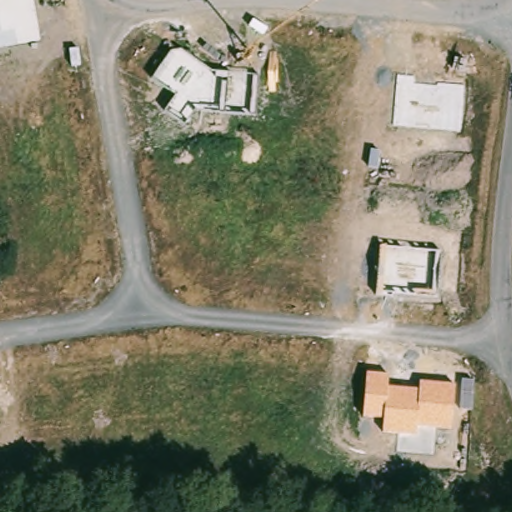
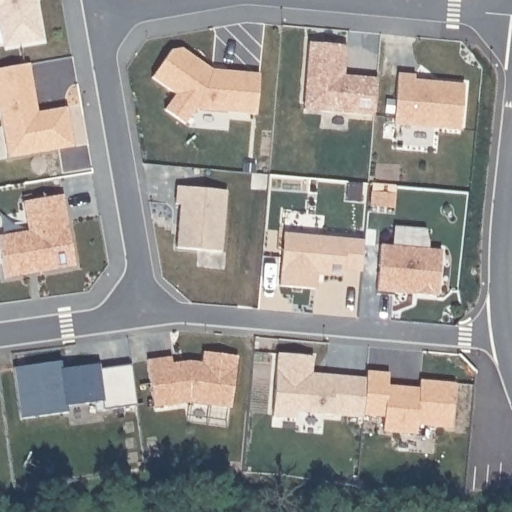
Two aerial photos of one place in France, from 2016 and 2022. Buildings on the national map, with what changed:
unchanged [(15,29),(0,30),(0,0),(33,0),(39,40),(17,44),(15,29)]
new [(311,45),(348,48),(346,77),(361,79),(379,80),(376,117),(323,113),(305,112),(306,101),(311,45)]
unchanged [(164,111),(175,95),(153,80),(172,50),(180,50),(211,71),(257,76),(254,115),(195,110),(184,125),(164,111)]
new [(37,97),(40,114),(69,109),(76,149),(10,160),(0,104),(0,71),(31,65),(37,97)]
unchanged [(397,75),(415,76),(414,83),(436,84),(436,82),(465,85),(461,131),(394,125),(397,75)]
new [(178,188),(228,192),(223,253),(178,250),(182,206),(177,205),(178,188)]
new [(30,233),(25,204),(65,196),(77,267),(6,280),(0,241),(0,238),(30,233)]
new [(317,290),(281,287),(285,235),(365,241),(363,273),(345,272),(345,278),(325,276),(318,275),(317,290)]
unchanged [(381,246),(440,251),(436,297),(377,291),(381,246)]
new [(312,355),(311,372),(366,376),(363,416),(298,410),(297,420),(272,417),(277,353),(312,355)]
new [(173,360),(175,372),(186,371),(185,365),(192,364),(204,365),(205,354),(240,357),(235,409),(192,405),(156,410),(149,363),(173,360)]
new [(63,363),(64,375),(80,372),(80,368),(100,365),(101,370),(134,365),(139,407),(105,411),(104,402),(69,407),(70,413),(23,420),(16,370),(63,363)]
unchanged [(366,373),(389,375),(388,386),(419,388),(419,380),(454,383),(450,428),(416,426),(415,435),(382,431),(383,417),(363,416),(366,373)]

